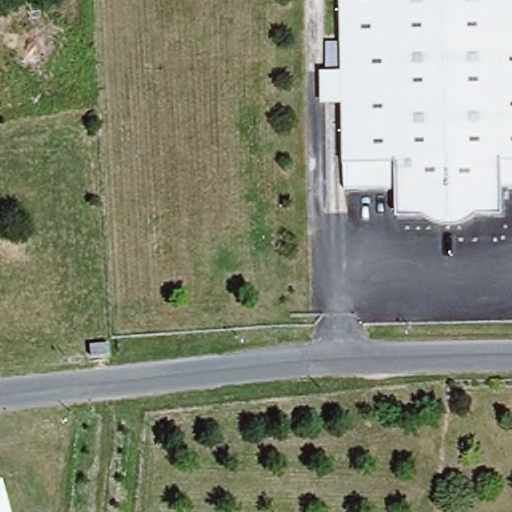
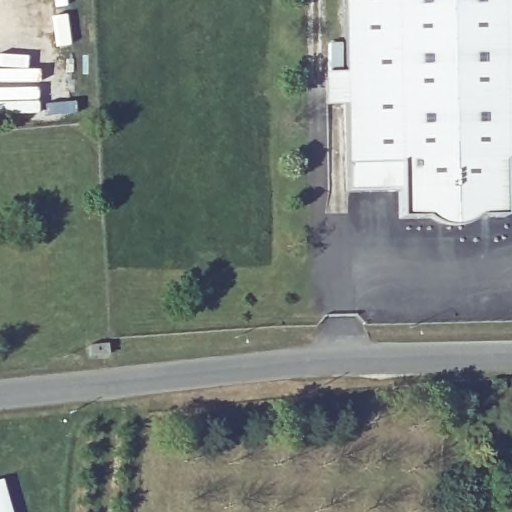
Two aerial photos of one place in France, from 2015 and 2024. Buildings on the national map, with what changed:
unchanged [(345,70),(343,0),(512,0),(512,187),(502,187),(502,215),(398,216),(398,188),(346,190),(345,103),(325,103),(324,70),(345,70)]
unchanged [(2,512),(0,512),(0,504),(2,512)]

